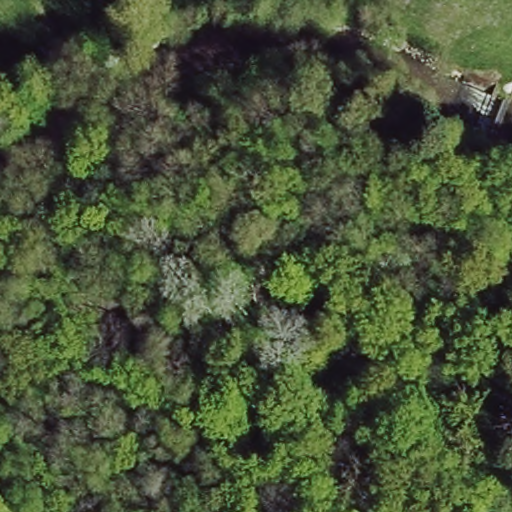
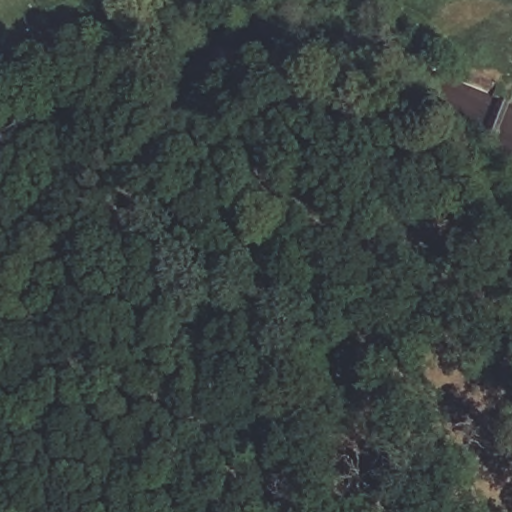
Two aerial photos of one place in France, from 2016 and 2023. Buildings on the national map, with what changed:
[]

